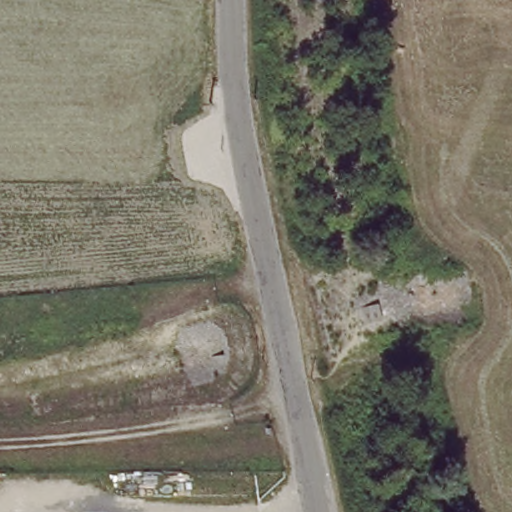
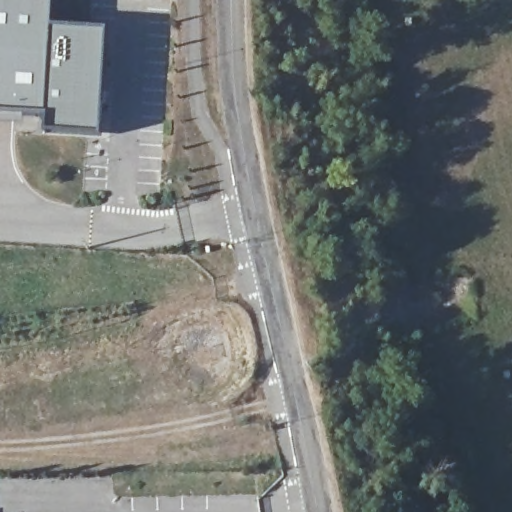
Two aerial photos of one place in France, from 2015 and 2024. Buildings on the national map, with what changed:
new [(48,7),(47,44),(103,48),(99,147),(42,143),(44,122),(0,121),(0,5),(48,7)]

